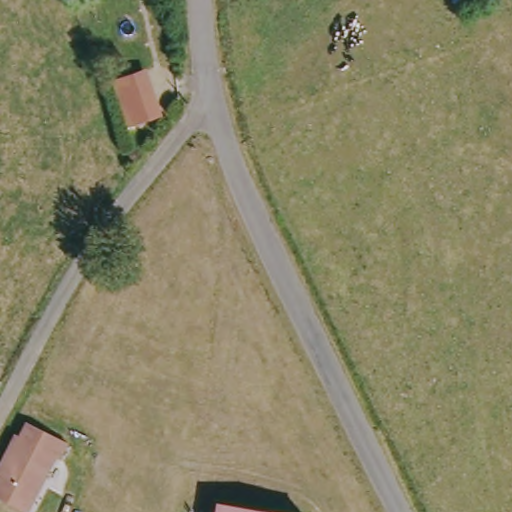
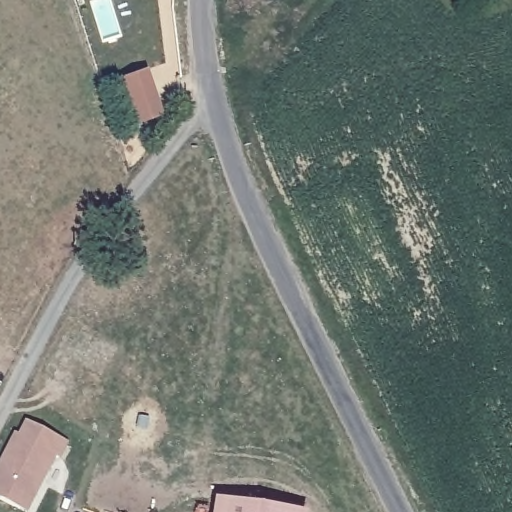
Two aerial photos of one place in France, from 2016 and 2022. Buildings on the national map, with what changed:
unchanged [(164,115),(131,128),(113,81),(147,68),(164,115)]
unchanged [(23,511),(0,499),(0,473),(21,434),(26,438),(35,422),(74,446),(46,491),(33,512),(25,512),(23,511)]
unchanged [(215,503),(275,512),(214,512),(215,503)]

